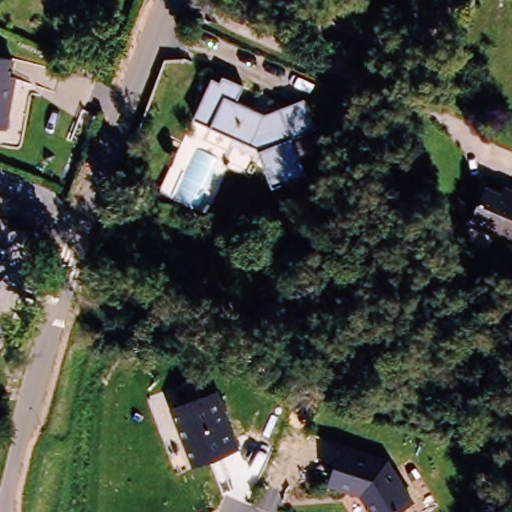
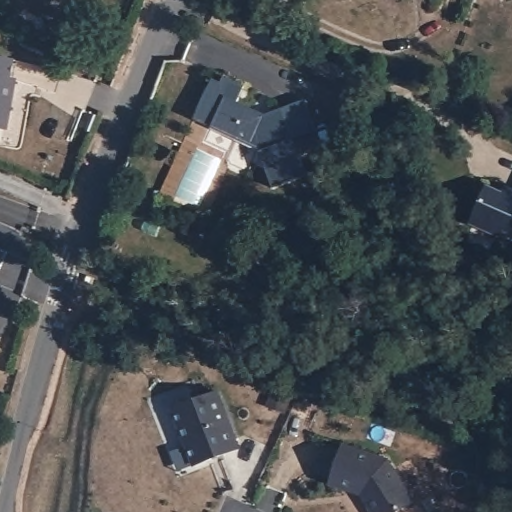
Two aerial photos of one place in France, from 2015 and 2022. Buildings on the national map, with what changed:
unchanged [(10,60),(6,78),(12,79),(9,93),(2,97),(1,105),(5,111),(1,128),(0,128),(0,58),(10,60)]
unchanged [(268,185),(255,145),(189,111),(207,72),(218,78),(221,71),(242,81),(235,97),(265,112),(280,107),(305,100),(315,133),(290,138),(301,177),(268,185)]
unchanged [(497,232),(470,219),(485,182),(500,188),(503,181),(512,185),(512,232),(500,226),(497,232)]
unchanged [(5,251),(0,265),(0,249),(5,251)]
unchanged [(2,286),(0,291),(0,285),(2,286)]
unchanged [(219,391),(241,448),(193,467),(171,407),(219,391)]
unchanged [(392,454),(419,496),(392,512),(382,512),(367,487),(335,476),(348,438),(392,454)]

